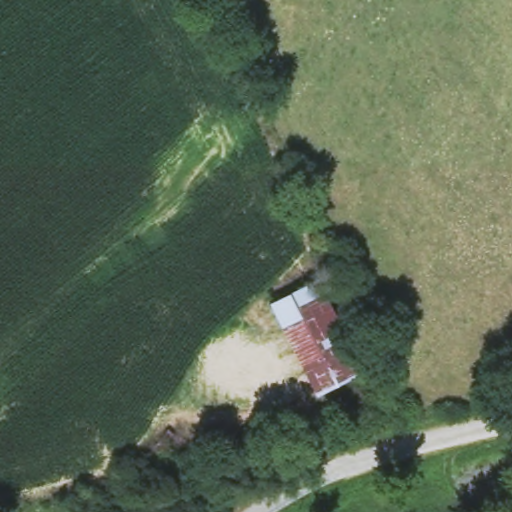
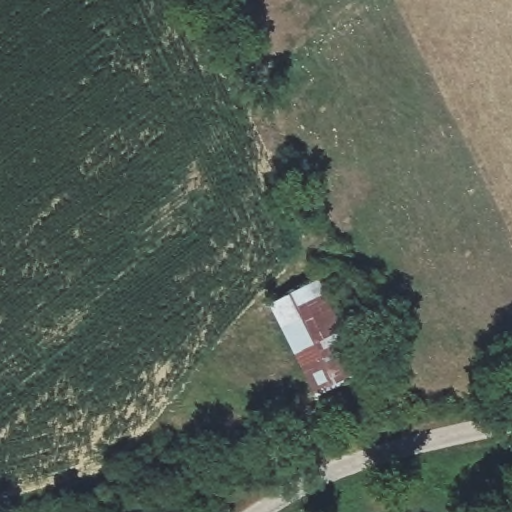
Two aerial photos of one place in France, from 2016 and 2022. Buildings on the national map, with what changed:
unchanged [(317,276),(365,375),(317,399),(264,302),(317,276)]

